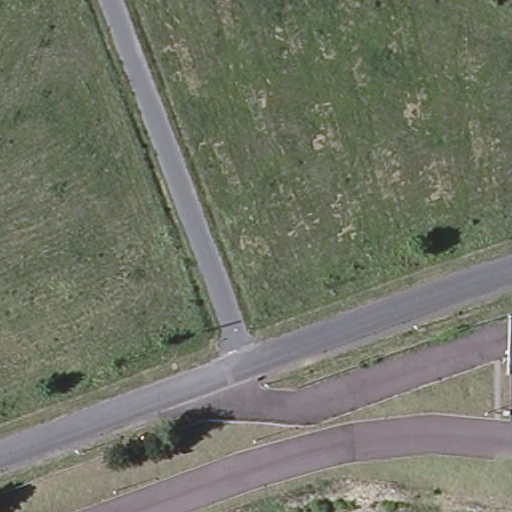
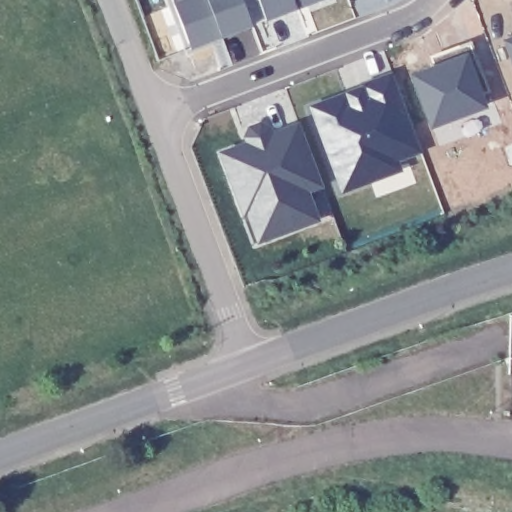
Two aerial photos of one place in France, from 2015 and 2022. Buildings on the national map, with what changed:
new [(241,0),(252,29),(190,50),(172,1),(175,0),(241,0)]
new [(296,7),(265,19),(258,0),(303,0),(295,4),(296,7)]
new [(304,0),(314,0),(305,4),(304,0)]
new [(503,40),(512,36),(512,65),(503,40)]
new [(470,41),(490,94),(482,96),(487,111),(430,131),(409,76),(433,67),(430,56),(470,41)]
new [(422,154),(399,162),(403,173),(340,196),(307,106),(392,73),(422,154)]
new [(320,186),(305,192),(315,221),(259,242),(248,212),(243,214),(222,155),(247,146),(244,139),(247,128),(260,124),(268,128),(272,136),(298,126),(320,186)]

